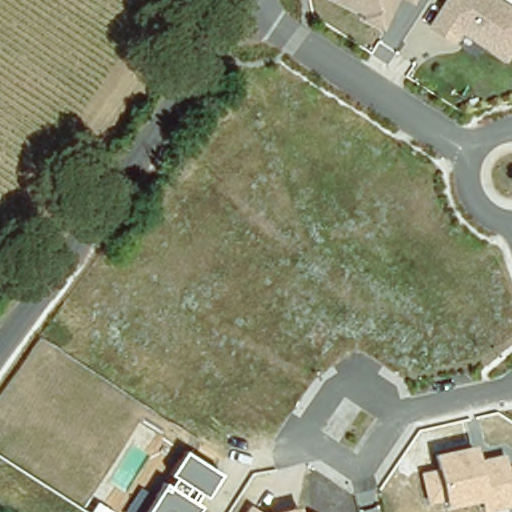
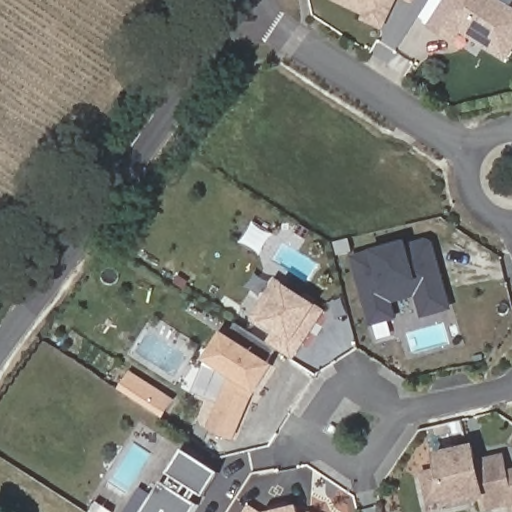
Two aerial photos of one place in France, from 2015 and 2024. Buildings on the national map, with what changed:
unchanged [(381,33),(366,26),(367,23),(333,7),(336,0),(415,0),(412,5),(411,9),(396,2),(381,33)]
unchanged [(453,44),(430,29),(448,0),(491,0),(512,13),(512,49),(505,61),(492,52),(484,47),(460,32),(453,44)]
new [(422,320),(416,297),(393,302),(398,321),(369,327),(351,258),(432,237),(452,311),(422,320)]
new [(295,360),(277,348),(268,342),(273,331),(258,322),(249,317),(273,279),(284,285),(316,304),(327,311),(295,360)]
new [(269,362),(274,364),(256,393),(235,442),(209,430),(227,376),(204,361),(223,331),(229,336),(238,324),(268,342),(277,348),(269,362)]
unchanged [(481,501),(446,507),(444,500),(427,504),(419,474),(438,470),(436,452),(479,444),(481,458),(506,454),(509,469),(512,468),(512,508),(486,512),(483,512),(481,501)]
unchanged [(206,499),(200,495),(196,501),(203,506),(199,512),(145,512),(157,495),(165,479),(170,482),(174,474),(170,470),(185,449),(221,471),(206,499)]
unchanged [(249,505),(260,512),(245,512),(249,505)]
unchanged [(297,505),(299,512),(275,512),(297,505)]

